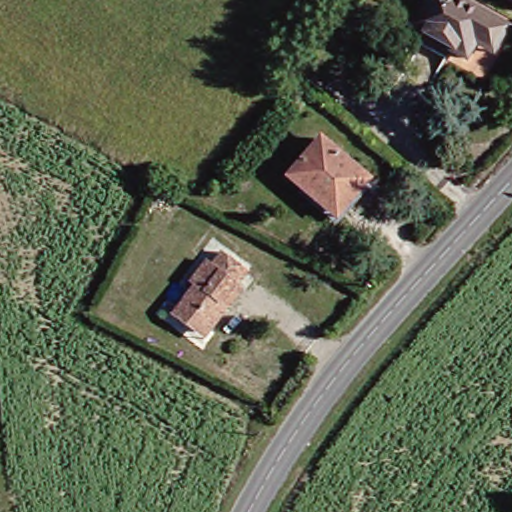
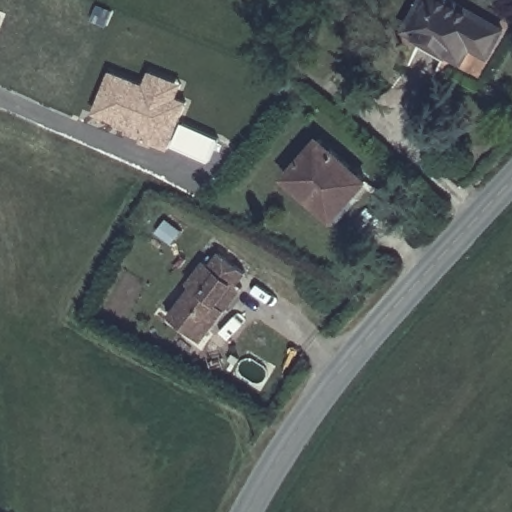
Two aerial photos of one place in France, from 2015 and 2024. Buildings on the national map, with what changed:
unchanged [(500,48),(483,38),(472,59),(414,26),(429,0),(465,0),(512,26),(500,48)]
new [(112,71),(146,84),(150,73),(182,86),(179,98),(190,102),(172,149),(122,129),(123,125),(96,114),(112,71)]
new [(212,161),(173,144),(182,122),(221,139),(212,161)]
unchanged [(377,172),(354,219),(294,193),(315,145),(377,172)]
unchanged [(201,329),(184,319),(205,287),(199,284),(213,260),(218,264),(227,250),(253,267),(244,281),(251,285),(238,306),(222,333),(217,339),(201,329)]

